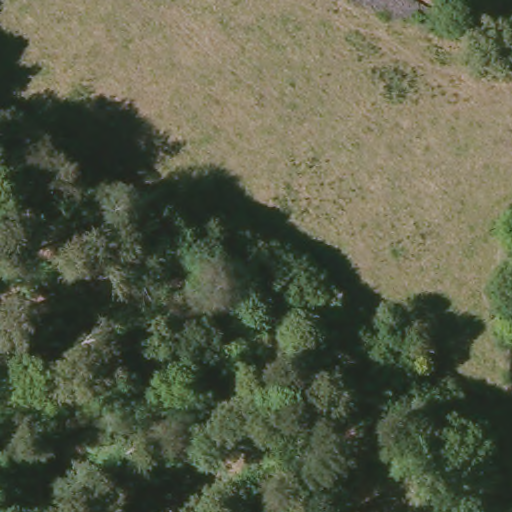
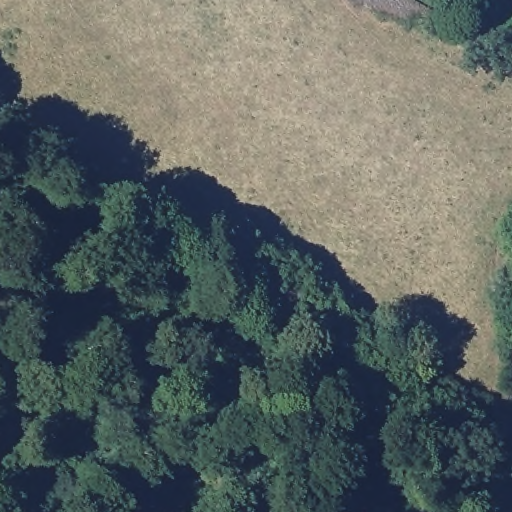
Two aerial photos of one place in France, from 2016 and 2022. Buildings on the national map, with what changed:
[]

